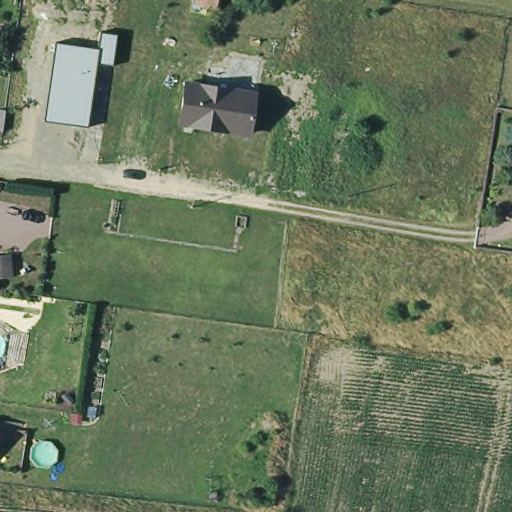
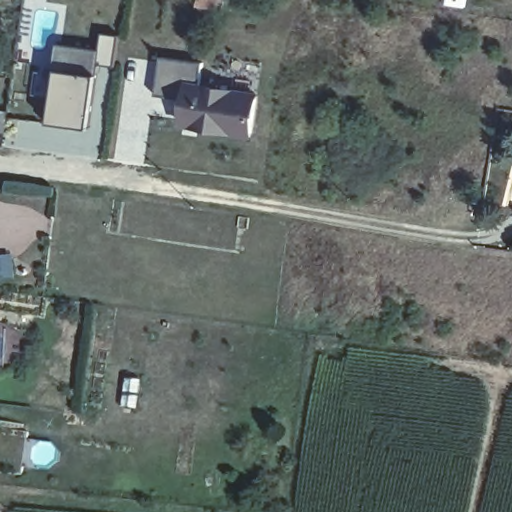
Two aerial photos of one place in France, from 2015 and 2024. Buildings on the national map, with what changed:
unchanged [(99,50),(102,34),(117,36),(113,65),(97,64),(88,128),(46,121),(57,44),(99,50)]
new [(187,90),(186,99),(157,94),(162,59),(207,65),(204,92),(187,90)]
unchanged [(251,140),(182,129),(186,99),(187,90),(204,92),(257,100),(251,140)]

